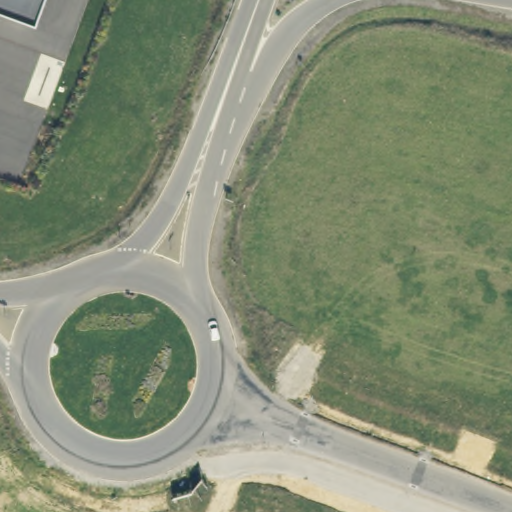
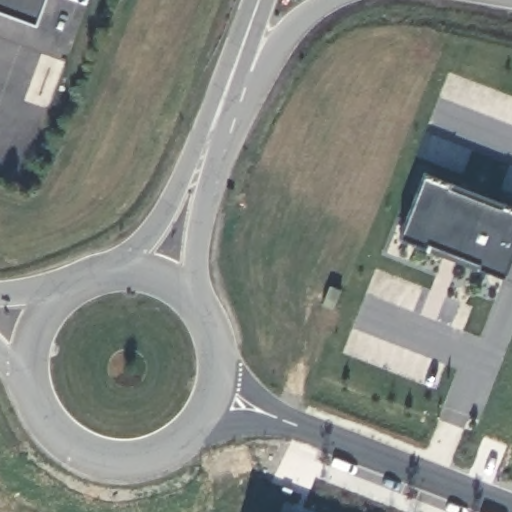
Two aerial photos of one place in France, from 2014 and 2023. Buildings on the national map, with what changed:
unchanged [(36,26),(0,13),(0,0),(45,0),(36,26)]
new [(399,238),(423,175),(512,207),(512,261),(505,279),(399,238)]

